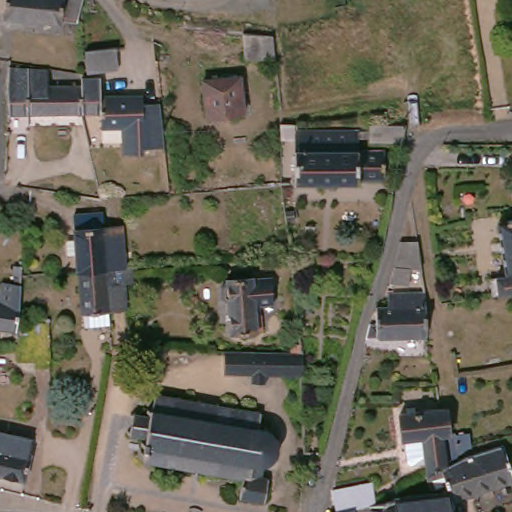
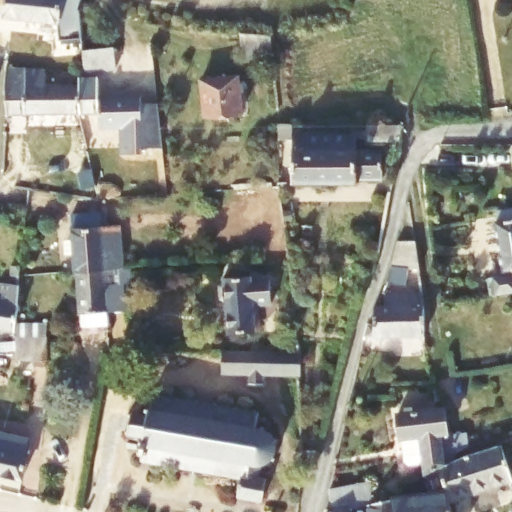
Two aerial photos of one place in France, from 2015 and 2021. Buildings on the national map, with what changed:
unchanged [(63,18),(63,25),(3,21),(4,0),(83,0),(83,17),(83,20),(63,18)]
unchanged [(278,60),(276,60),(273,59),(248,60),(247,37),(268,38),(277,38),(279,39),(279,41),(278,49),(278,52),(279,60),(278,60)]
unchanged [(123,69),(91,71),(89,49),(121,46),(123,69)]
unchanged [(149,95),(150,103),(168,102),(174,146),(153,148),(153,153),(132,155),(129,128),(108,129),(106,113),(88,114),(33,115),(12,116),(13,67),(31,67),(52,68),(52,73),(66,75),(65,85),(87,84),(86,78),(91,78),(102,78),(106,77),(107,98),(149,95)]
unchanged [(211,120),(206,83),(243,80),(248,116),(211,120)]
unchanged [(289,123),(291,123),(293,131),(366,132),(364,125),(366,125),(369,125),(397,125),(403,127),(401,144),(359,144),(359,153),(384,153),(382,180),(358,181),(357,184),(293,184),(292,142),(278,142),(277,123),(277,121),(278,123),(289,123)]
unchanged [(31,208),(38,209),(38,215),(30,214),(31,208)]
unchanged [(508,265),(500,217),(503,216),(503,210),(512,209),(512,265),(508,265)]
unchanged [(68,239),(79,238),(78,212),(106,210),(108,227),(126,226),(129,267),(121,267),(111,268),(82,269),(81,252),(69,252),(68,239)]
unchanged [(391,281),(394,267),(401,241),(418,240),(421,268),(410,268),(408,281),(391,281)]
unchanged [(24,272),(26,262),(31,263),(30,272),(24,272)]
unchanged [(86,325),(85,313),(82,269),(111,268),(112,281),(113,312),(114,324),(86,325)]
unchanged [(491,290),(491,273),(512,271),(512,287),(491,290)]
unchanged [(0,284),(11,285),(13,273),(30,275),(26,331),(0,328),(0,284)]
unchanged [(274,308),(261,308),(262,336),(233,337),(231,306),(226,302),(225,290),(231,283),(253,281),(256,284),(273,283),(274,308)]
unchanged [(431,338),(371,341),(374,330),(380,330),(381,312),(391,311),(394,298),(429,297),(431,309),(431,312),(431,338)]
unchanged [(59,358),(56,358),(56,366),(43,365),(43,358),(23,357),(24,342),(25,336),(61,337),(59,358)]
unchanged [(253,385),(253,376),(225,375),(226,347),(284,348),(298,349),(300,378),(264,377),(264,385),(253,385)]
unchanged [(243,501),(247,481),(231,479),(231,481),(227,481),(228,478),(211,475),(211,478),(206,477),(206,474),(193,472),(192,475),(187,474),(188,471),(172,468),(171,471),(166,471),(166,466),(153,465),(151,468),(149,468),(149,464),(146,464),(147,457),(143,457),(143,454),(148,454),(148,447),(146,447),(146,444),(149,444),(150,440),(130,437),(131,434),(135,435),(138,419),(155,422),(159,400),(161,400),(161,396),(165,397),(164,401),(179,403),(179,400),(184,400),(184,404),(199,406),(201,403),(203,403),(205,392),(223,395),(221,407),(224,408),(224,410),(238,413),(239,410),(245,411),(244,414),(258,417),(258,413),(264,414),(263,417),(266,417),(263,432),(266,434),(269,429),(276,433),(273,437),(279,443),(283,441),(286,445),(283,447),(280,459),(283,461),(280,466),(276,463),(266,470),(264,481),(271,482),(268,504),(243,501)]
unchanged [(440,467),(428,474),(424,435),(405,437),(403,412),(443,408),(449,407),(453,431),(448,432),(447,433),(451,461),(440,467)]
unchanged [(26,478),(0,472),(0,431),(36,439),(26,478)]
unchanged [(451,499),(448,489),(440,467),(451,461),(480,449),(506,443),(512,464),(512,477),(451,499)]
unchanged [(338,510),(334,488),(374,480),(378,503),(398,498),(398,512),(373,512),(373,504),(348,510),(348,512),(331,512),(331,511),(338,510)]
unchanged [(454,512),(398,512),(398,498),(398,496),(404,495),(441,490),(448,489),(451,499),(454,512)]

